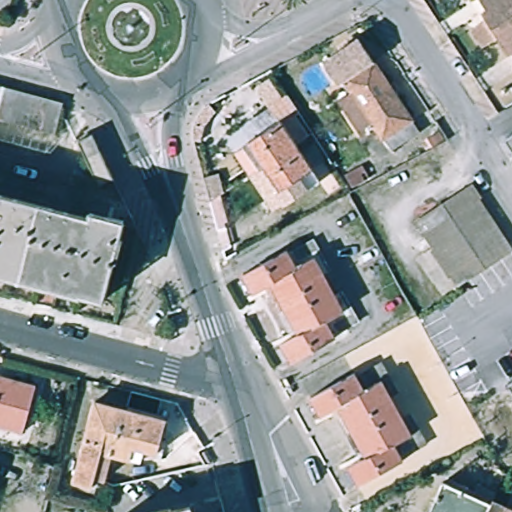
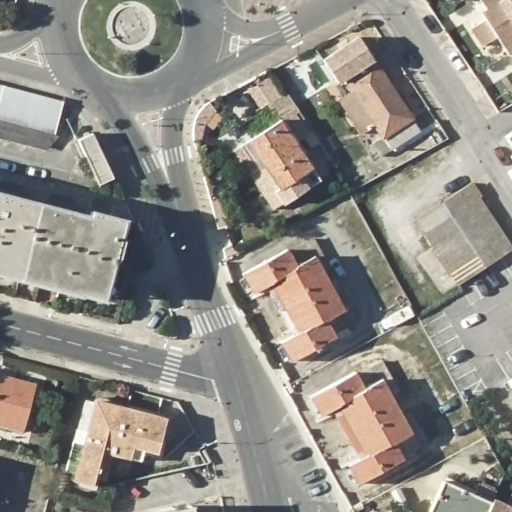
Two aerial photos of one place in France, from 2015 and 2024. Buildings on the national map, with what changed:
unchanged [(488,20),(493,17),(482,0),(512,0),(512,56),(511,57),(488,20)]
unchanged [(361,36),(423,132),(383,159),(373,143),(382,137),(374,124),(361,132),(338,98),(352,89),(346,80),(342,82),(326,58),(361,36)]
unchanged [(58,134),(0,119),(0,86),(65,103),(58,134)]
unchanged [(294,113),(307,132),(295,141),(315,169),(283,193),(250,143),(294,113)]
unchanged [(512,143),(506,134),(512,130),(512,143)]
unchanged [(117,180),(102,187),(80,141),(95,134),(117,180)]
unchanged [(414,222),(468,187),(511,252),(456,286),(414,222)]
unchanged [(19,198),(15,214),(43,222),(47,206),(68,211),(64,227),(83,233),(89,209),(106,213),(103,226),(122,230),(103,300),(0,274),(0,193),(19,198)]
unchanged [(284,251),(287,253),(311,240),(328,270),(321,273),(333,296),(340,292),(356,322),(331,335),(333,339),(289,364),(277,344),(296,334),(270,285),(252,294),(240,274),(284,251)]
unchanged [(357,373),(359,377),(384,363),(400,392),(392,397),(405,419),(412,414),(429,444),(403,458),(405,462),(361,486),(350,466),(368,456),(341,407),(323,417),(313,398),(357,373)]
unchanged [(37,386),(25,433),(0,427),(0,377),(37,386)]
unchanged [(512,385),(510,383),(512,382),(512,385)]
unchanged [(102,454),(93,488),(75,483),(95,403),(128,411),(116,457),(112,456),(102,454)]
unchanged [(167,420),(159,455),(133,449),(130,461),(116,457),(128,411),(167,420)]
unchanged [(445,482),(493,504),(489,512),(431,512),(445,482)]
unchanged [(512,502),(512,512),(489,512),(493,504),(494,501),(509,508),(512,502)]
unchanged [(182,510),(182,512),(175,512),(182,510)]

